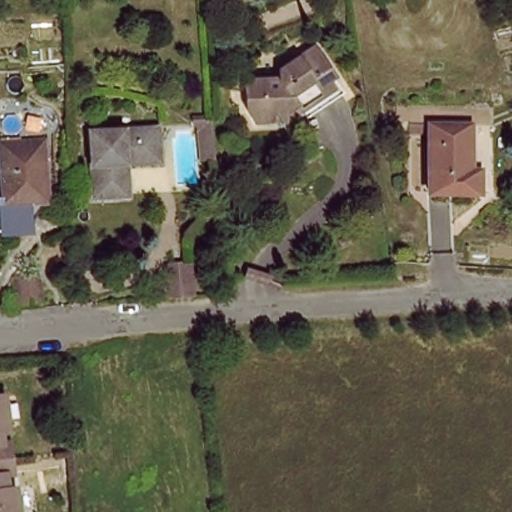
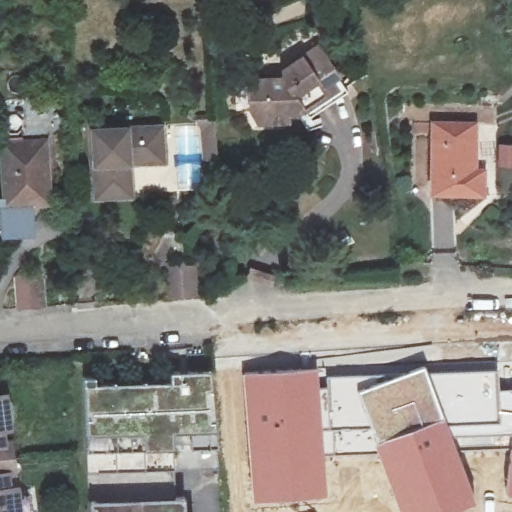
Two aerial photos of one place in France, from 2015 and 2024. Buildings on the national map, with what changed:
unchanged [(310,110),(304,102),(299,96),(288,104),(289,111),(262,115),(253,107),(250,75),(284,71),(282,64),(315,40),(341,77),(347,85),(310,110)]
new [(217,114),(220,150),(205,150),(203,124),(197,114),(217,114)]
unchanged [(479,125),(474,170),(486,172),(484,195),(431,188),(435,121),(479,125)]
unchanged [(160,125),(162,155),(127,157),(129,187),(98,189),(95,127),(160,125)]
unchanged [(48,141),(54,205),(7,208),(1,145),(48,141)]
demolished [(47,258),(51,257),(53,288),(49,289),(27,290),(25,260),(47,258)]
new [(37,274),(41,273),(44,305),(39,305),(18,306),(15,275),(37,274)]
new [(376,378),(425,364),(427,370),(439,404),(453,436),(457,448),(476,501),(446,512),(398,512),(373,447),(371,441),(367,427),(357,386),(376,378)]
new [(318,366),(320,386),(323,386),(328,425),(331,425),(332,430),(336,430),(337,445),(363,445),(363,450),(325,453),(327,495),(250,500),(241,370),(318,366)]
new [(498,386),(512,386),(512,418),(510,433),(497,433),(498,445),(457,448),(453,436),(439,404),(427,370),(497,368),(498,386)]
new [(92,383),(162,380),(167,380),(167,373),(208,370),(216,470),(172,471),(173,497),(93,500),(93,509),(173,506),(173,512),(86,512),(86,500),(81,377),(92,376),(92,383)]
new [(326,386),(325,375),(375,372),(376,378),(357,386),(367,427),(336,430),(332,430),(331,425),(328,425),(323,386),(326,386)]
unchanged [(9,395),(12,427),(6,427),(7,444),(13,443),(14,456),(16,473),(9,475),(10,488),(17,488),(19,512),(0,512),(0,395),(9,395)]
new [(510,433),(512,418),(512,493),(504,492),(509,445),(510,433)]
new [(173,497),(190,496),(190,512),(173,512),(173,506),(93,509),(93,500),(173,497)]

